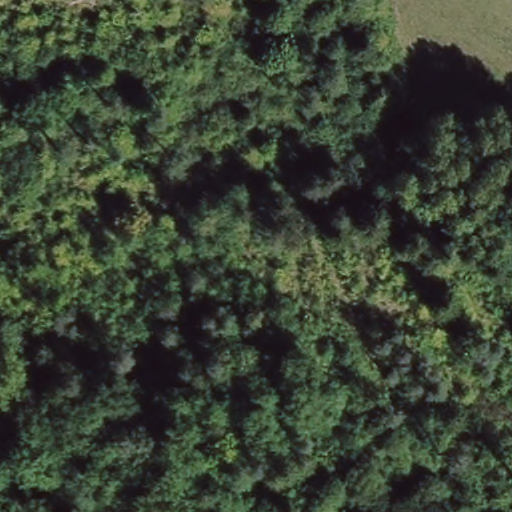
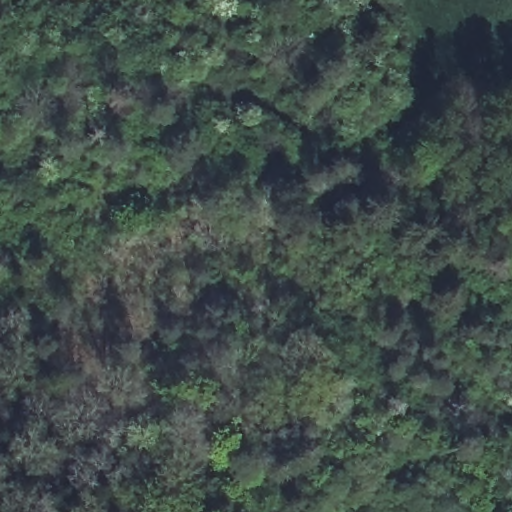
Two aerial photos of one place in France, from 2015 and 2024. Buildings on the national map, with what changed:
[]

